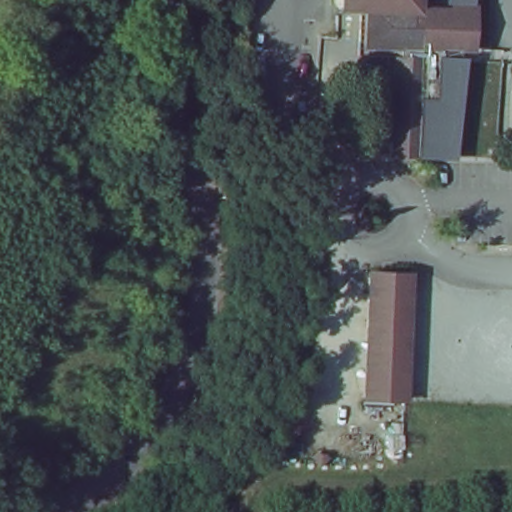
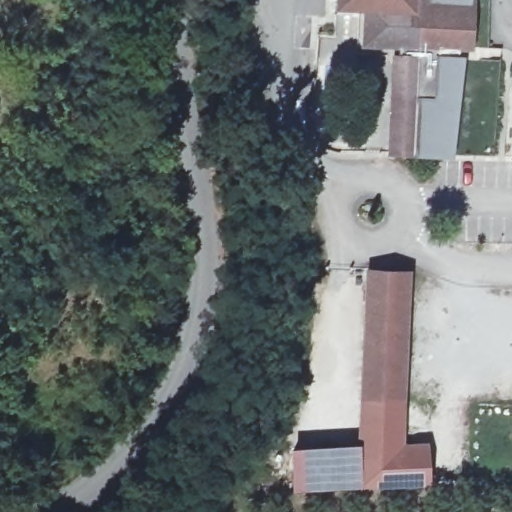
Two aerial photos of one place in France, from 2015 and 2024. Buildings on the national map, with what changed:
unchanged [(329,7),(329,0),(408,0),(408,7),(362,7),(329,7)]
unchanged [(438,57),(437,101),(415,100),(416,76),(417,8),(423,1),(472,2),(470,32),(468,48),(468,59),(438,57)]
unchanged [(408,7),(417,8),(416,76),(415,100),(390,98),(391,58),(400,57),(400,47),(362,46),(362,7),(408,7)]
unchanged [(415,154),(388,152),(390,98),(415,100),(415,154)]
unchanged [(398,400),(361,397),(365,274),(408,277),(398,400)]
new [(398,400),(408,277),(403,443),(429,442),(430,485),(292,491),(290,449),(360,446),(361,397),(398,400)]

